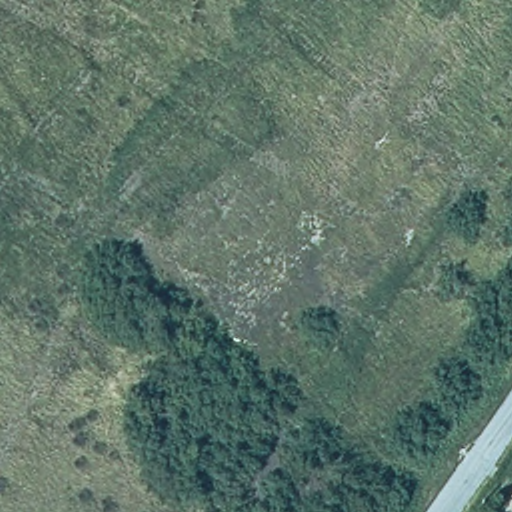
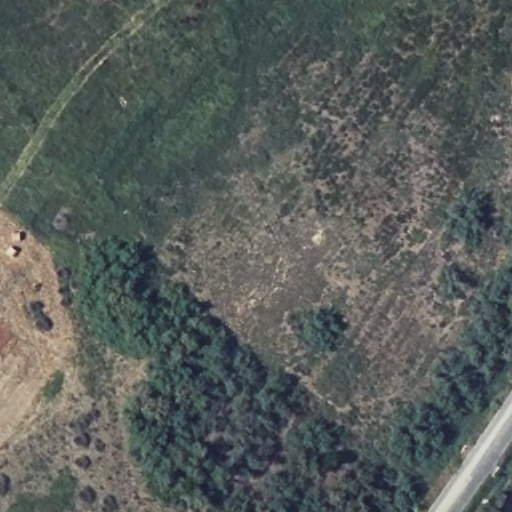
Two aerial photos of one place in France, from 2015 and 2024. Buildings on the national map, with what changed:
[]

